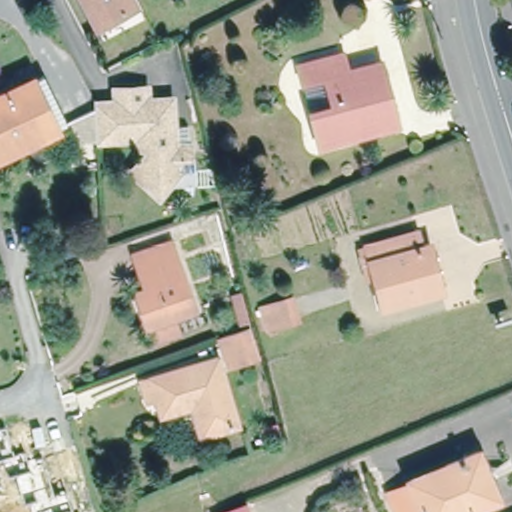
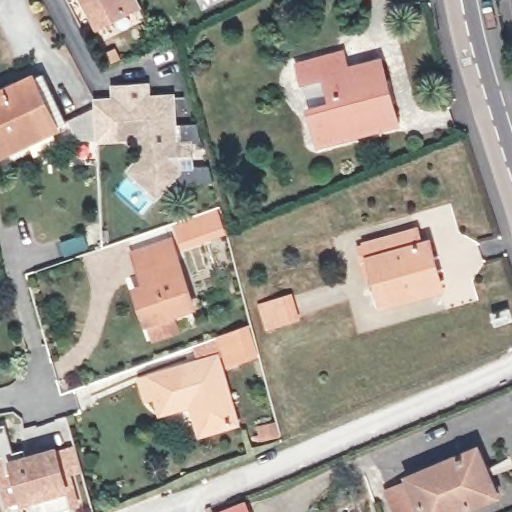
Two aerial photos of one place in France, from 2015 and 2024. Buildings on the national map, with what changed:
unchanged [(91,31),(76,0),(130,0),(132,7),(91,31)]
unchanged [(300,71),(340,54),(348,71),(380,60),(403,115),(331,145),(318,117),(308,90),(300,71)]
unchanged [(57,124),(0,151),(0,92),(34,76),(57,124)]
unchanged [(151,87),(153,100),(174,100),(175,144),(186,144),(187,166),(155,194),(134,174),(147,157),(144,139),(144,131),(124,132),(123,139),(99,139),(97,102),(122,100),(121,88),(151,87)]
unchanged [(390,226),(396,243),(423,232),(442,275),(388,299),(362,239),(390,226)]
unchanged [(148,323),(137,292),(149,287),(141,251),(172,241),(194,306),(148,323)]
unchanged [(255,305),(291,293),(297,322),(263,335),(255,305)]
unchanged [(258,346),(227,356),(219,330),(252,319),(258,346)]
unchanged [(200,432),(190,398),(153,406),(150,392),(140,394),(136,379),(211,357),(230,422),(200,432)]
new [(53,512),(33,512),(31,502),(22,505),(20,501),(6,506),(0,485),(0,426),(5,425),(16,457),(59,448),(59,449),(74,447),(82,472),(72,474),(81,504),(53,512)]
unchanged [(409,481),(406,473),(482,446),(499,496),(458,512),(396,512),(388,490),(409,481)]
new [(246,501),(250,512),(213,512),(246,501)]

